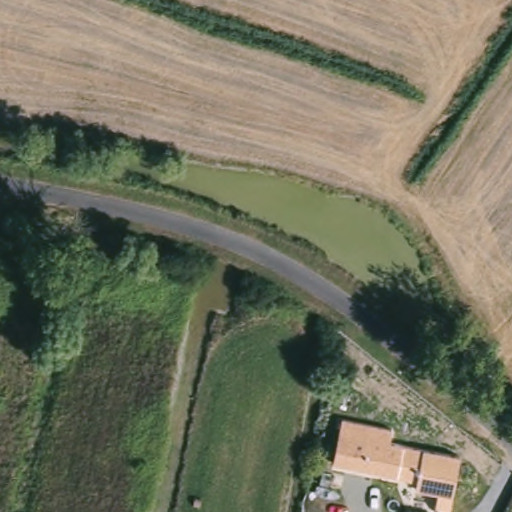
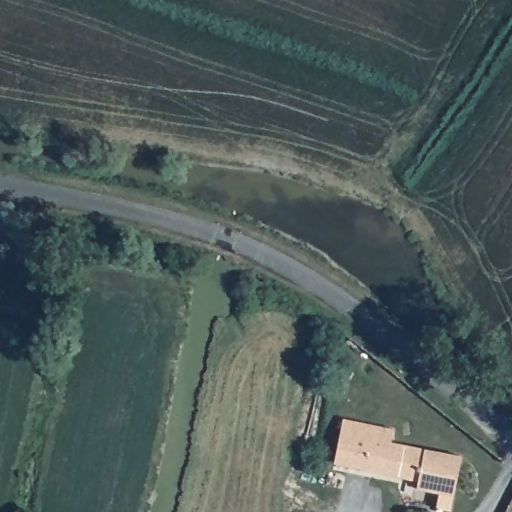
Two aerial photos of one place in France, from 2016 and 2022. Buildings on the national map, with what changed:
unchanged [(330,429),(333,419),(382,430),(380,444),(449,459),(440,498),(405,490),(406,482),(323,463),(330,429)]

